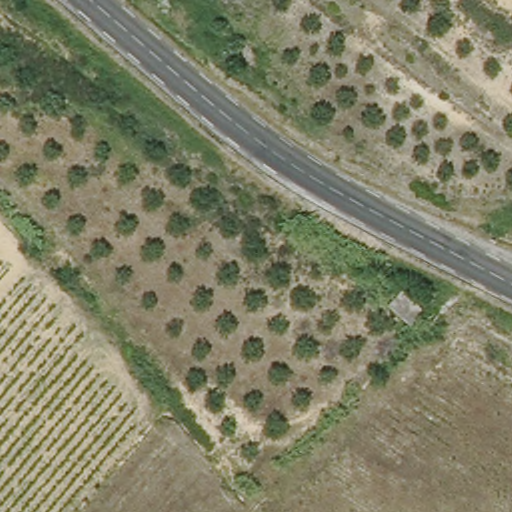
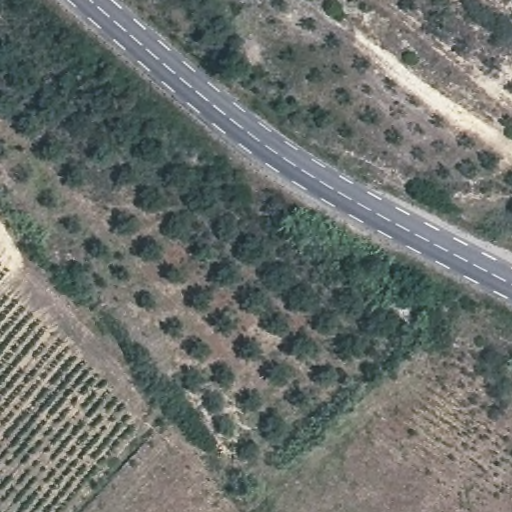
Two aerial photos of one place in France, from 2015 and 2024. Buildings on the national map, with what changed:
unchanged [(386,303),(399,287),(421,306),(408,323),(386,303)]

